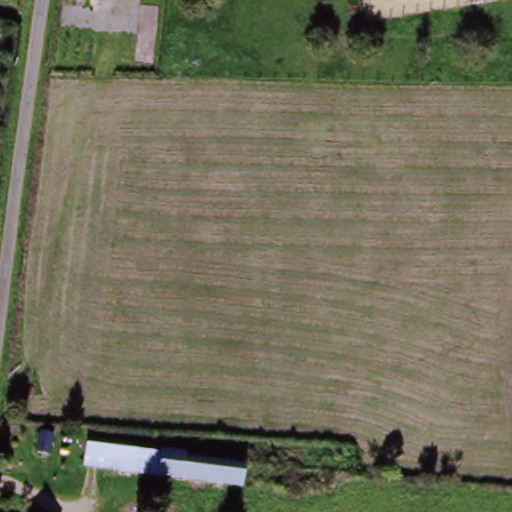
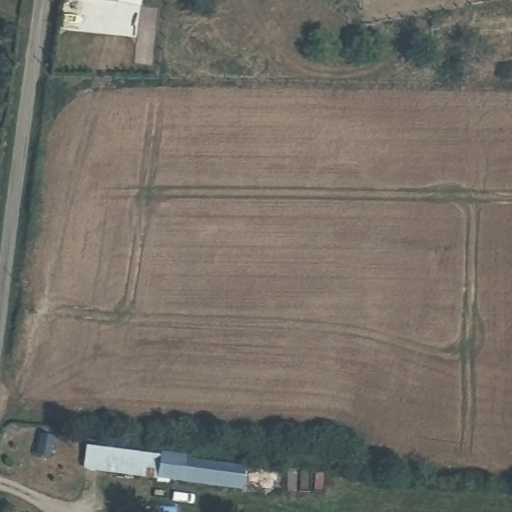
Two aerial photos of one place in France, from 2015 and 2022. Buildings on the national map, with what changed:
unchanged [(73,0),(114,0),(113,5),(73,0)]
unchanged [(48,463),(33,459),(37,437),(52,440),(48,463)]
unchanged [(168,451),(170,444),(188,448),(187,454),(240,464),(235,494),(104,470),(110,439),(168,451)]

